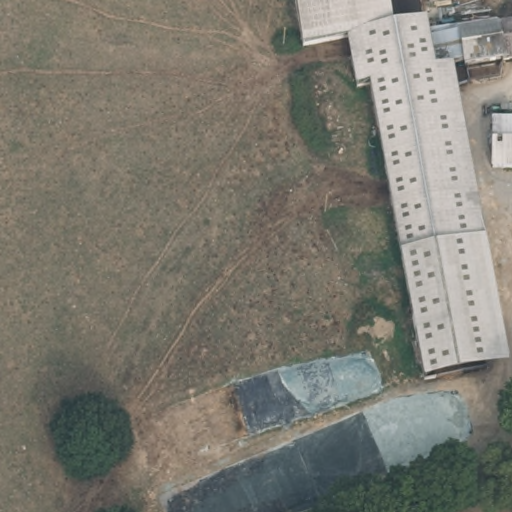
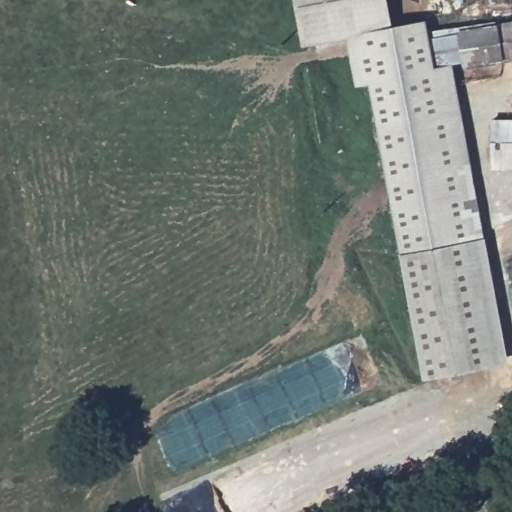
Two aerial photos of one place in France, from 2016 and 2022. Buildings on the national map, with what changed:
unchanged [(400,255),(370,84),(356,86),(347,37),(303,44),(295,0),(390,0),(394,24),(421,19),(422,27),(432,72),(453,69),(485,237),(508,363),(423,381),(400,255)]
unchanged [(512,15),(512,59),(453,69),(432,72),(422,27),(512,15)]
unchanged [(492,145),(491,118),(512,118),(512,145),(492,145)]
unchanged [(491,167),(492,145),(512,145),(512,167),(491,167)]

